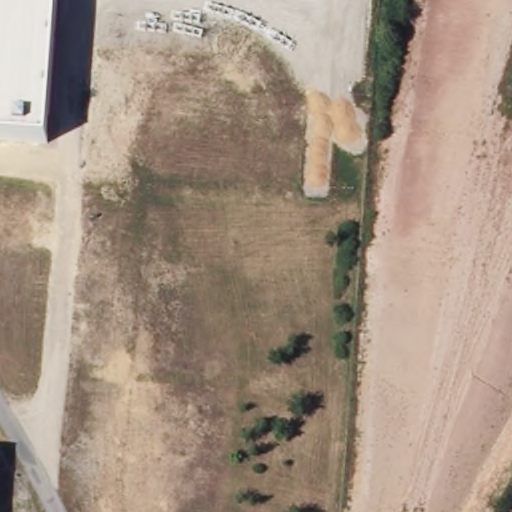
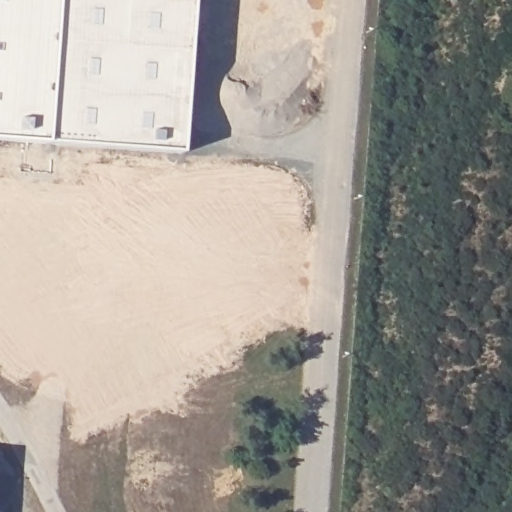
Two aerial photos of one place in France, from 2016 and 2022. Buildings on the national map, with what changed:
unchanged [(0,139),(0,0),(57,0),(45,144),(0,139)]
new [(192,0),(181,151),(45,144),(57,0),(192,0)]

